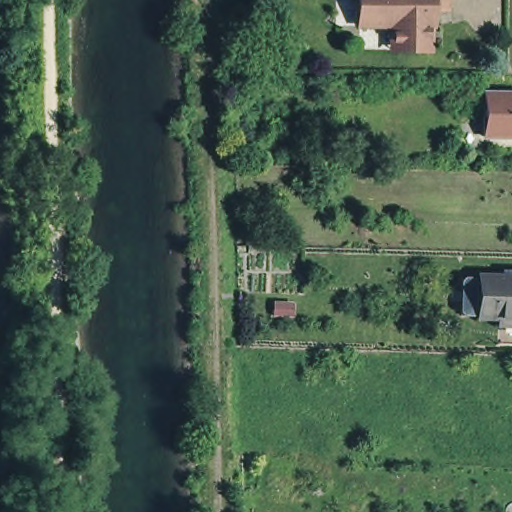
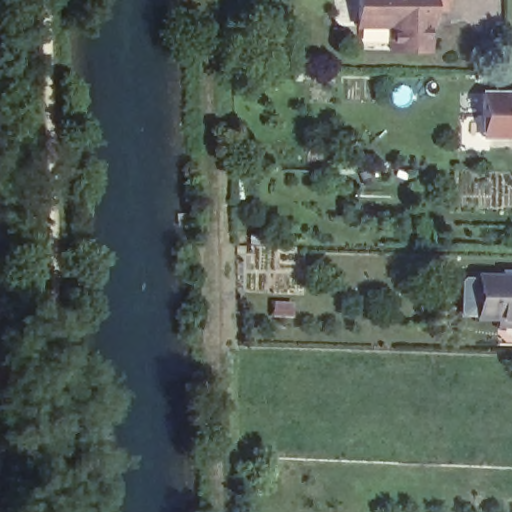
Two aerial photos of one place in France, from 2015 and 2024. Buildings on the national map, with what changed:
unchanged [(366,44),(366,20),(343,20),(342,0),(454,0),(454,4),(438,4),(438,20),(437,20),(437,44),(408,44),(399,44),(366,44)]
unchanged [(482,110),(483,86),(512,86),(512,131),(489,131),(482,130),(482,126),(482,110)]
unchanged [(502,312),(483,311),(483,290),(484,281),(484,270),(512,270),(512,320),(502,319),(502,312)]

